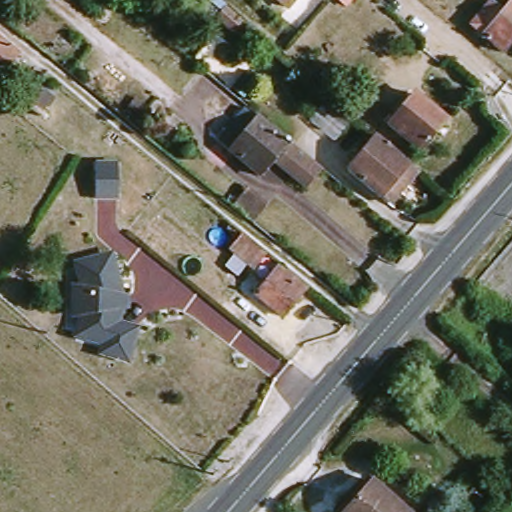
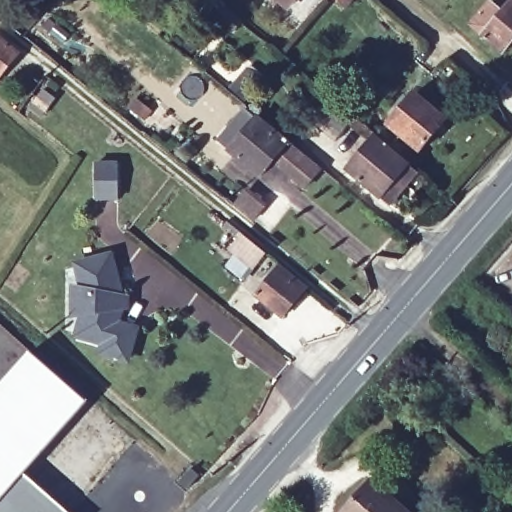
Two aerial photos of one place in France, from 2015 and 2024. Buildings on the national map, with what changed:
unchanged [(295,2),(293,0),(297,0),(295,2)]
unchanged [(507,47),(474,24),(494,2),(504,10),(512,2),(512,41),(507,47)]
unchanged [(0,83),(0,30),(25,49),(0,83)]
unchanged [(343,80),(333,91),(324,84),(333,72),(343,80)]
unchanged [(454,118),(427,148),(398,122),(424,92),(454,118)]
unchanged [(311,184),(279,157),(265,173),(226,139),(254,106),(328,167),(311,184)]
unchanged [(119,133),(111,142),(101,133),(109,124),(119,133)]
unchanged [(384,141),(414,167),(389,197),(358,171),(384,141)]
unchanged [(115,190),(115,196),(109,196),(93,196),(93,184),(93,172),(93,162),(115,161),(115,190)]
unchanged [(231,201),(242,189),(259,205),(250,217),(231,201)]
unchanged [(271,256),(258,270),(252,267),(242,278),(220,262),(229,250),(217,240),(229,222),(271,256)]
unchanged [(116,316),(114,321),(128,325),(134,327),(133,329),(124,358),(99,350),(101,341),(74,333),(80,311),(81,288),(74,262),(108,253),(119,294),(123,296),(124,300),(123,304),(119,306),(116,316)]
unchanged [(316,289),(290,316),(265,297),(289,266),(316,289)]
new [(88,403),(22,475),(66,512),(0,512),(0,386),(29,352),(88,403)]
unchanged [(416,512),(353,512),(379,478),(417,511),(416,512)]

